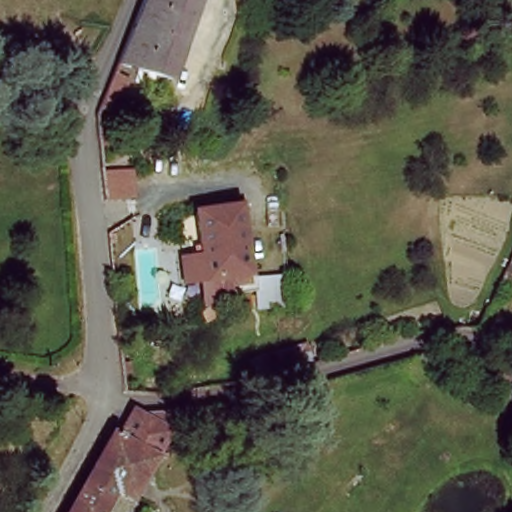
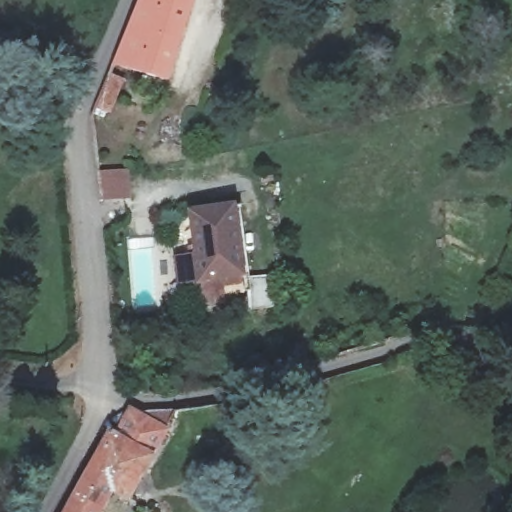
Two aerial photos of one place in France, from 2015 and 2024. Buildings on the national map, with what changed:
unchanged [(130,63),(113,105),(95,108),(140,0),(190,0),(168,73),(130,63)]
unchanged [(130,174),(133,198),(105,203),(103,178),(130,174)]
unchanged [(202,309),(198,284),(195,284),(191,259),(199,259),(193,214),(237,208),(243,279),(228,280),(233,304),(202,309)]
unchanged [(130,492),(116,486),(101,512),(68,512),(120,425),(125,428),(138,408),(170,425),(130,492)]

